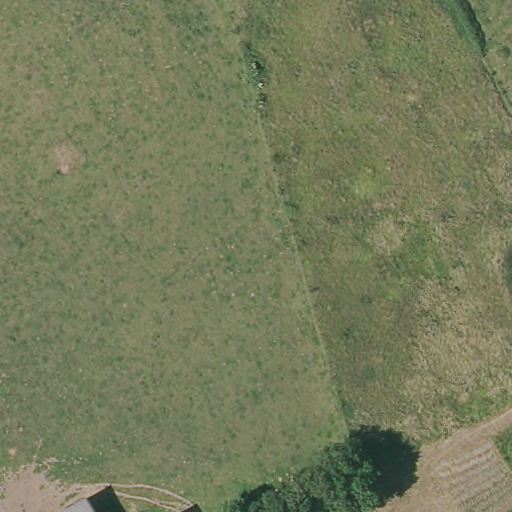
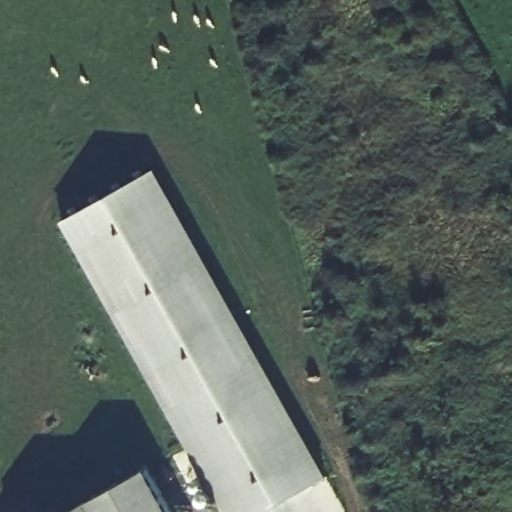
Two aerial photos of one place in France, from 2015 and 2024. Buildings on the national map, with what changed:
new [(325,478),(264,512),(224,512),(60,221),(151,170),(325,478)]
unchanged [(148,462),(176,512),(66,512),(148,462)]

